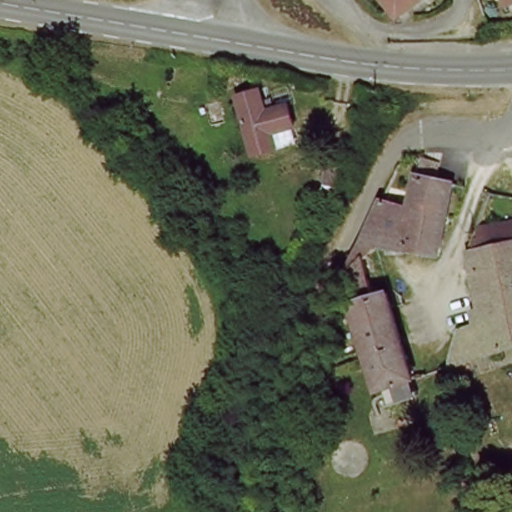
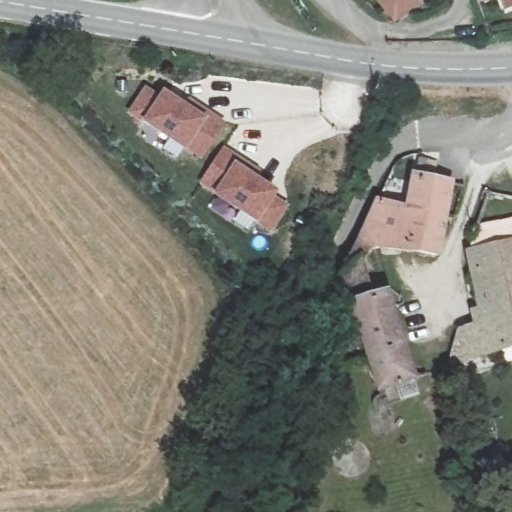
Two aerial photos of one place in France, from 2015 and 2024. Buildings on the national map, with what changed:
unchanged [(389,0),(420,0),(402,14),(389,0)]
new [(160,95),(164,88),(208,118),(212,112),(229,124),(201,162),(129,114),(147,86),(160,95)]
demolished [(239,100),(265,94),(271,113),(290,109),(296,131),(278,136),(280,153),(252,159),(239,100)]
new [(225,147),(238,156),(235,162),(281,191),(277,198),(289,206),(272,233),(200,186),(200,185),(225,147)]
unchanged [(447,168),(442,183),(468,190),(449,260),(403,246),(422,178),(424,178),(429,162),(447,168)]
unchanged [(395,179),(399,172),(422,178),(403,246),(374,247),(366,231),(395,179)]
unchanged [(365,265),(372,292),(383,291),(408,383),(407,383),(371,387),(347,274),(366,231),(374,247),(365,265)]
unchanged [(467,332),(480,331),(480,243),(512,245),(512,349),(452,356),(467,332)]

